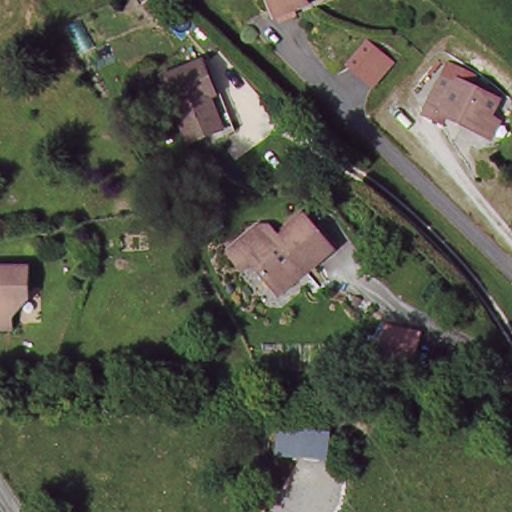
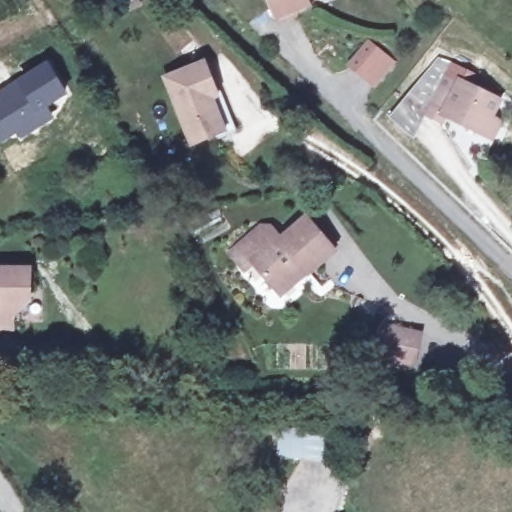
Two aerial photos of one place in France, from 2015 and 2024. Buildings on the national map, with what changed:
unchanged [(310,6),(276,17),(271,0),(309,0),(310,6)]
new [(395,64),(375,90),(345,65),(367,40),(395,64)]
new [(17,82),(47,61),(69,95),(48,108),(55,118),(21,139),(17,133),(0,143),(0,92),(17,82)]
unchanged [(215,94),(209,97),(218,130),(185,142),(161,76),(203,62),(215,94)]
unchanged [(494,141),(483,136),(442,117),(438,125),(425,118),(443,75),(500,101),(490,120),(500,126),(494,141)]
unchanged [(339,251),(313,275),(306,270),(284,291),(257,266),(247,275),(230,259),(258,232),(272,231),(285,243),(308,221),(339,251)]
unchanged [(26,270),(27,290),(27,301),(15,308),(11,311),(10,328),(0,327),(0,269),(26,270)]
unchanged [(415,327),(412,359),(380,356),(382,324),(415,327)]
unchanged [(309,428),(308,452),(282,450),(285,423),(309,428)]

